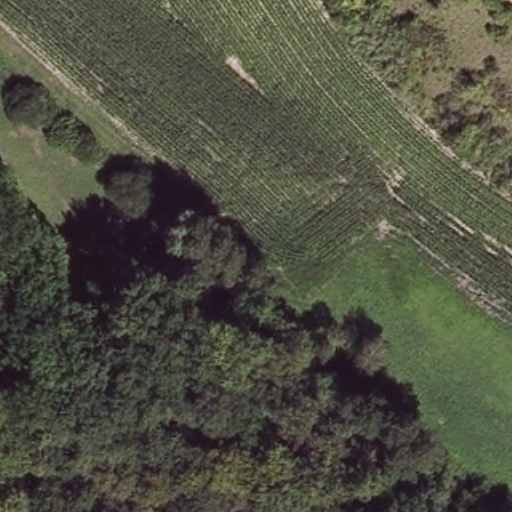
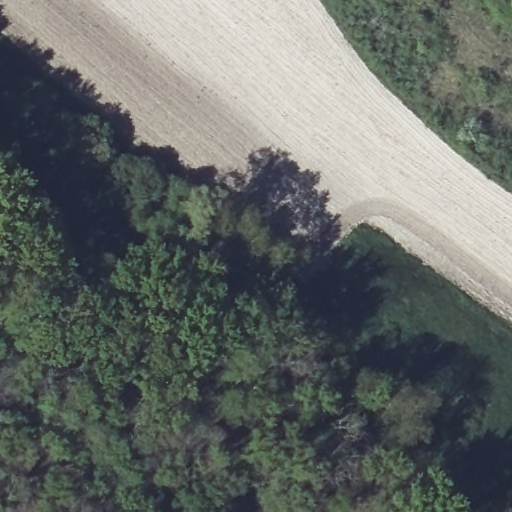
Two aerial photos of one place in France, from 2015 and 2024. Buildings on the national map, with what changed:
[]

